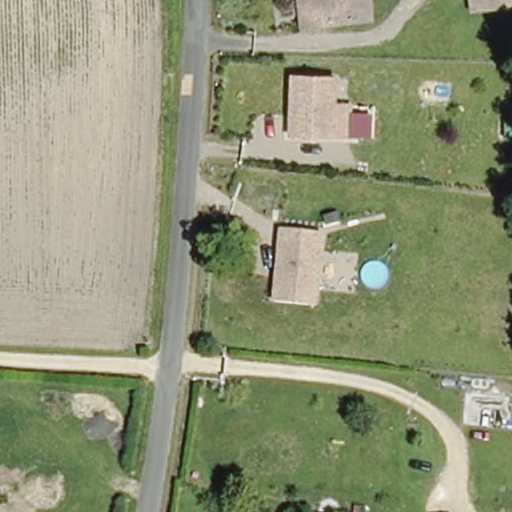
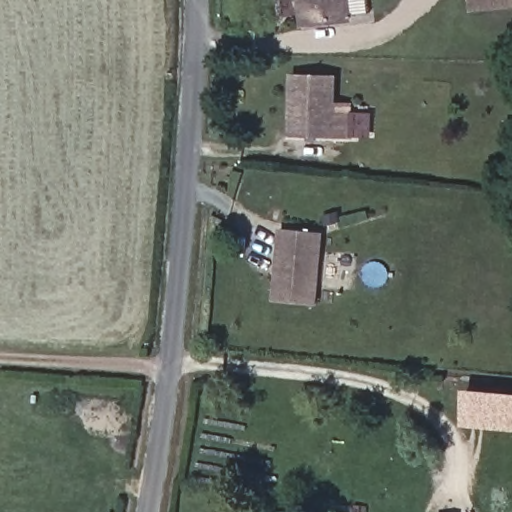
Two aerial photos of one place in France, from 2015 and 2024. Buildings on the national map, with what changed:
unchanged [(304,0),(347,0),(349,18),(306,21),(304,0)]
unchanged [(512,0),(512,6),(473,10),(473,0),(512,0)]
unchanged [(288,76),(332,79),(331,104),(348,105),(347,137),(286,135),(288,76)]
unchanged [(320,303),(273,300),(280,229),(325,234),(320,303)]
new [(512,393),(512,431),(460,427),(464,389),(512,393)]

